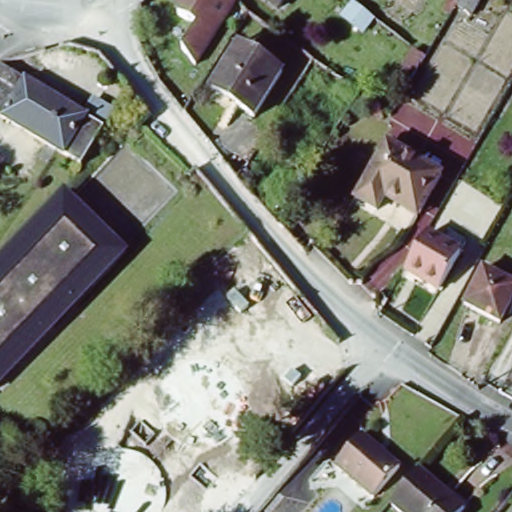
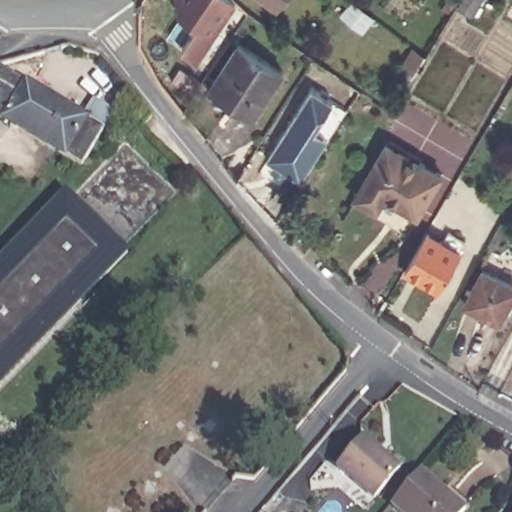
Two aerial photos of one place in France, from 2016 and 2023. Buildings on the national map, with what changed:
unchanged [(200,69),(187,51),(202,27),(183,15),(181,0),(236,0),(241,4),(200,69)]
unchanged [(280,11),(266,0),(288,0),(280,11)]
unchanged [(210,88),(240,42),(284,73),(255,117),(210,88)]
unchanged [(0,120),(0,71),(102,134),(80,168),(0,120)]
new [(304,183),(269,159),(315,86),(350,108),(304,183)]
unchanged [(232,147),(222,160),(214,150),(225,139),(232,147)]
unchanged [(445,173),(419,220),(387,200),(377,215),(351,200),(387,142),(445,173)]
unchanged [(240,182),(229,169),(239,155),(241,159),(251,164),(249,168),(245,174),(255,183),(249,192),(240,182)]
unchanged [(85,289),(91,283),(67,259),(44,235),(39,231),(31,236),(27,231),(39,220),(69,191),(73,196),(126,249),(131,254),(90,294),(85,289)]
unchanged [(39,231),(44,235),(67,259),(91,283),(85,289),(54,321),(57,325),(0,382),(0,267),(31,236),(39,231)]
unchanged [(440,290),(405,273),(425,236),(460,255),(440,290)]
unchanged [(314,241),(315,243),(313,248),(307,256),(297,245),(305,238),(314,241)]
unchanged [(512,312),(510,315),(506,312),(500,323),(464,305),(482,270),(512,286),(512,312)]
unchanged [(375,444),(402,467),(396,474),(376,498),(338,466),(364,435),(375,444)]
unchanged [(399,512),(391,505),(419,472),(464,510),(463,512),(399,512)]

